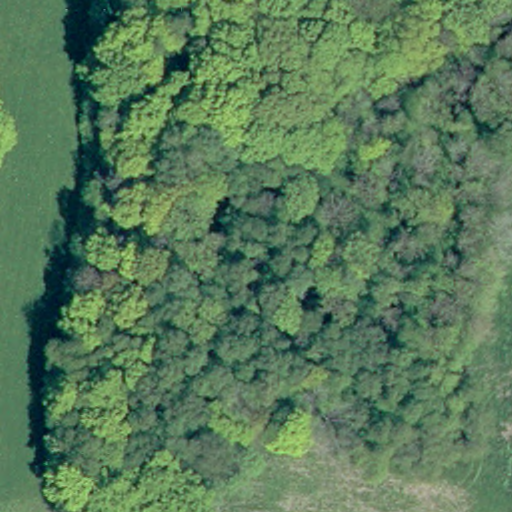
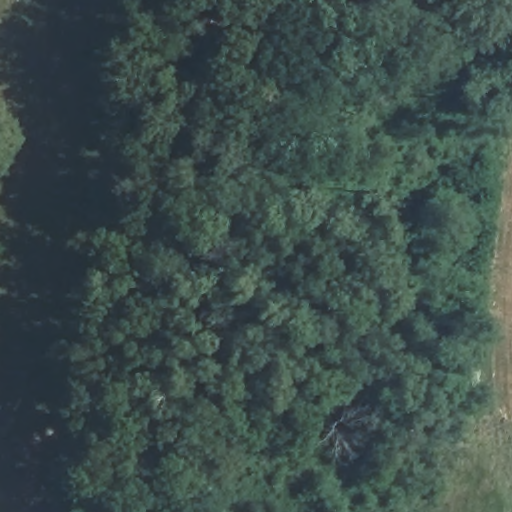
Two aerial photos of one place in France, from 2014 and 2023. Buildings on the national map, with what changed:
[]

